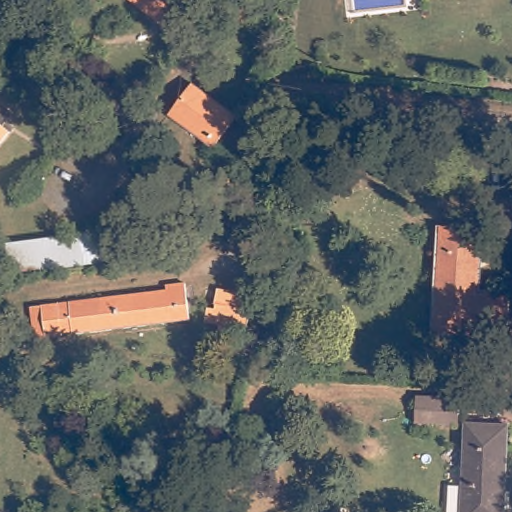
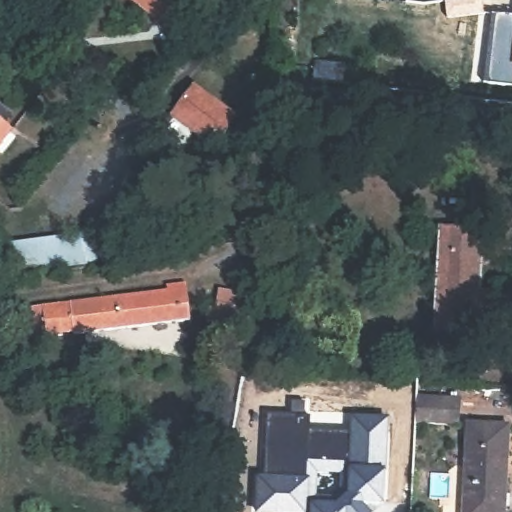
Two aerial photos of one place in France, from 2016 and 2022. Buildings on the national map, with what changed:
unchanged [(134,0),(189,0),(218,24),(210,35),(197,51),(134,0)]
unchanged [(198,86),(241,122),(218,152),(174,117),(198,86)]
unchanged [(6,132),(0,138),(0,127),(6,132)]
unchanged [(136,226),(141,259),(2,279),(0,269),(0,245),(136,226)]
unchanged [(477,293),(510,296),(508,335),(435,332),(441,227),(480,230),(477,293)]
unchanged [(163,297),(162,292),(180,290),(185,327),(69,341),(69,338),(58,340),(58,342),(30,346),(27,313),(52,310),(163,297)]
unchanged [(417,399),(459,401),(458,427),(417,425),(417,399)]
new [(309,416),(309,432),(351,432),(352,418),(386,420),(381,503),(356,503),(361,508),(358,512),(254,512),(257,478),(263,478),(266,414),(309,416)]
unchanged [(505,512),(462,512),(466,426),(508,427),(506,496),(505,507),(505,512)]

